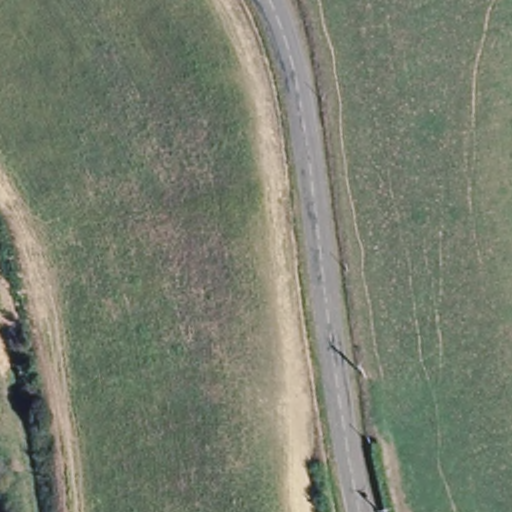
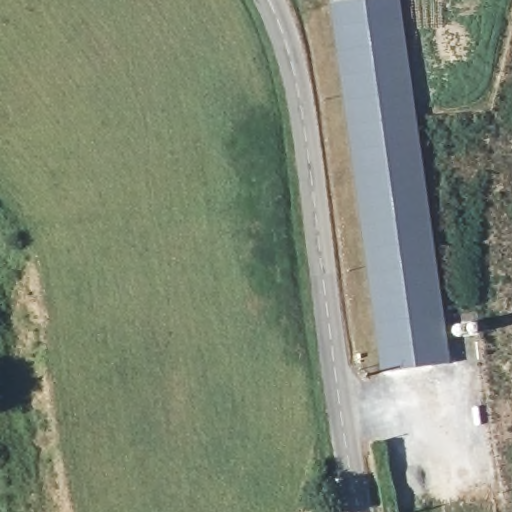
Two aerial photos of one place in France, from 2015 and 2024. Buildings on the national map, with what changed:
new [(327,17),(387,8),(435,356),(439,355),(443,378),(425,381),(422,358),(374,364),(327,17)]
new [(422,358),(425,381),(378,387),(374,364),(422,358)]

